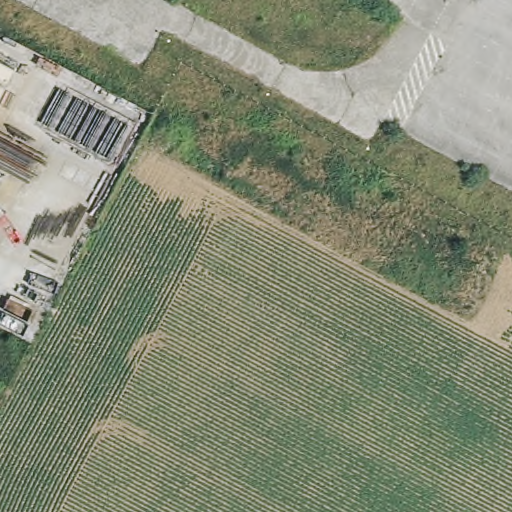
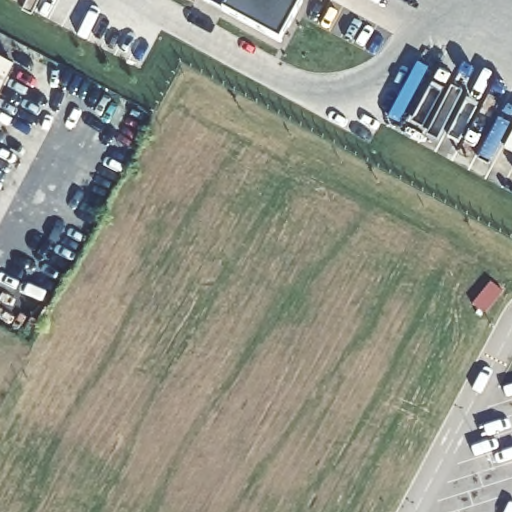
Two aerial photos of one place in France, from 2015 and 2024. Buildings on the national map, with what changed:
new [(282,41),(225,10),(206,0),(304,0),(282,41)]
unchanged [(0,101),(0,72),(12,78),(0,101)]

